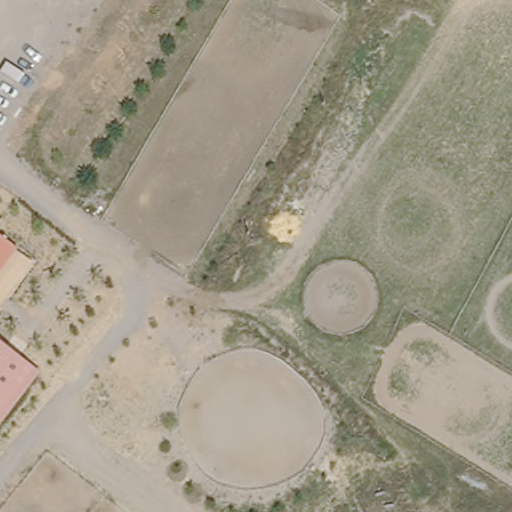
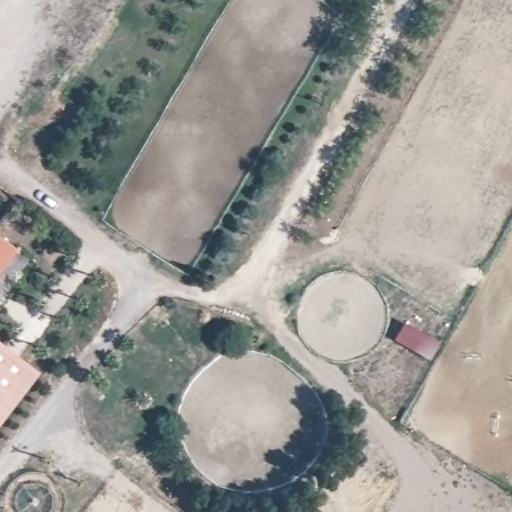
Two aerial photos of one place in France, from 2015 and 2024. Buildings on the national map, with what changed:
unchanged [(18,248),(16,251),(32,262),(0,305),(0,235),(18,248)]
unchanged [(40,371),(0,423),(0,342),(40,371)]

